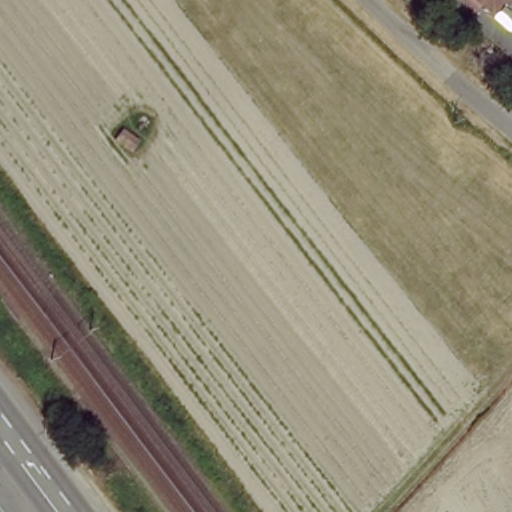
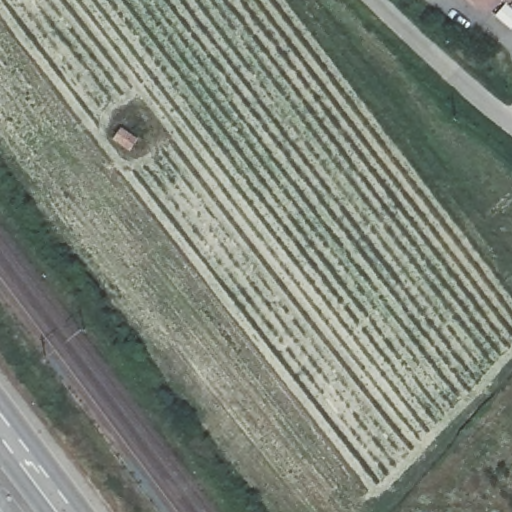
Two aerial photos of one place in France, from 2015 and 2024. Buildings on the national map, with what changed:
unchanged [(467,0),(512,0),(512,8),(507,3),(494,17),(485,9),(481,12),(473,5),(467,0)]
unchanged [(131,156),(110,140),(122,126),(139,140),(131,156)]

